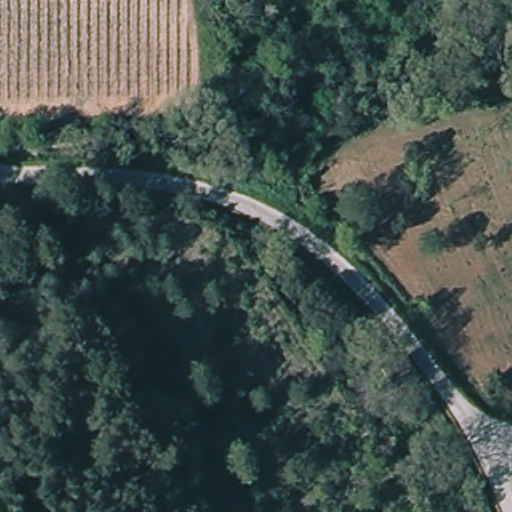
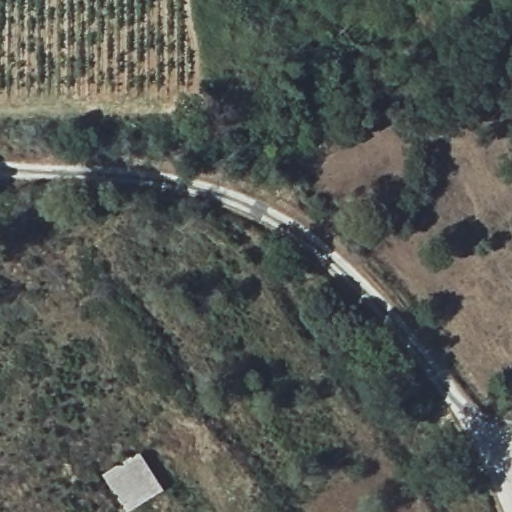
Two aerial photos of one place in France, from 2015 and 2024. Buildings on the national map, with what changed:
unchanged [(384,392),(375,380),(397,365),(406,378),(384,392)]
new [(127,512),(101,475),(137,450),(162,488),(127,512)]

